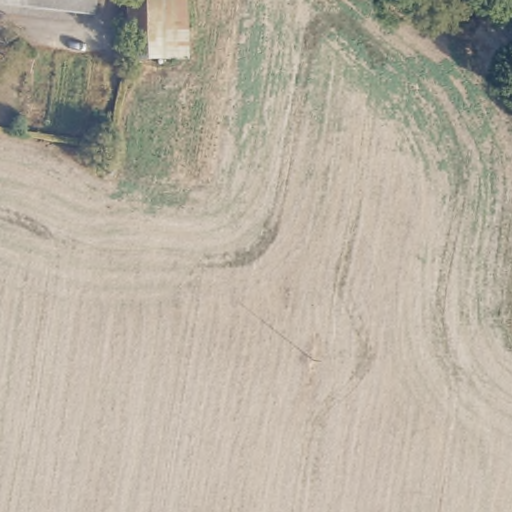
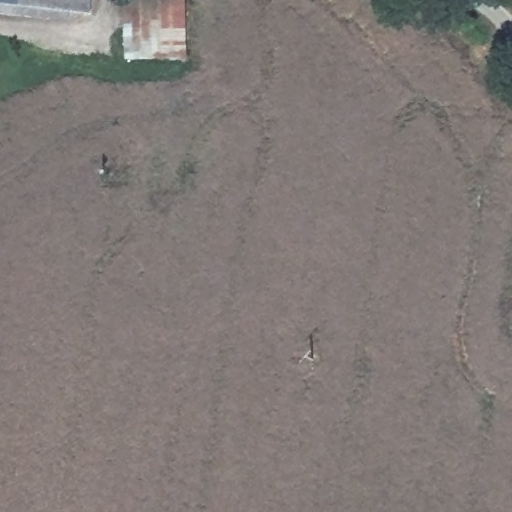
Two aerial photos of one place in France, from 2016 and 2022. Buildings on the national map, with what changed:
unchanged [(92,14),(0,5),(0,0),(93,0),(92,14)]
unchanged [(134,57),(134,0),(184,0),(187,54),(134,57)]

